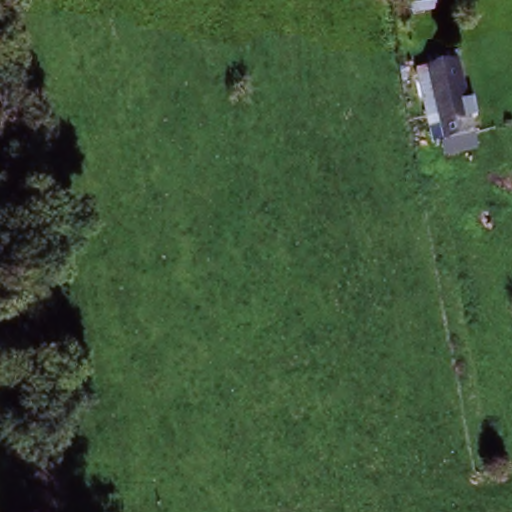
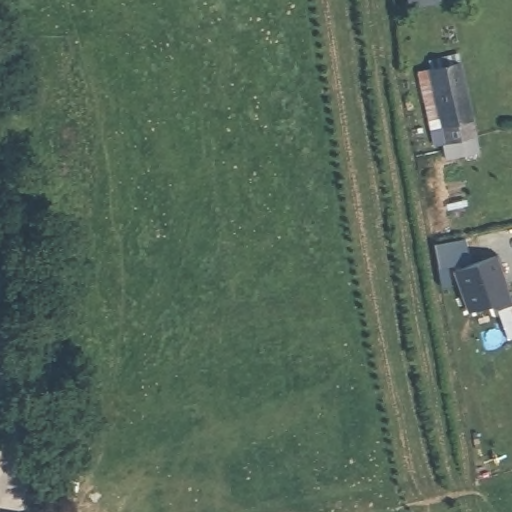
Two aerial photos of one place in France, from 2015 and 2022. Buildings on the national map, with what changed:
unchanged [(464,62),(473,144),(444,147),(435,65),(464,62)]
new [(512,302),(496,307),(494,302),(469,313),(453,272),(452,265),(439,267),(436,246),(467,241),(471,263),(498,253),(512,302)]

